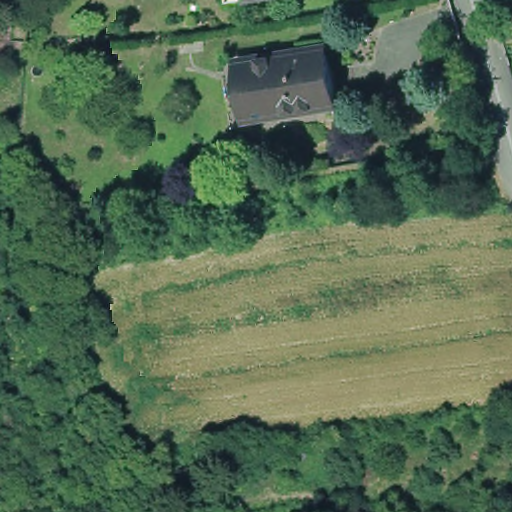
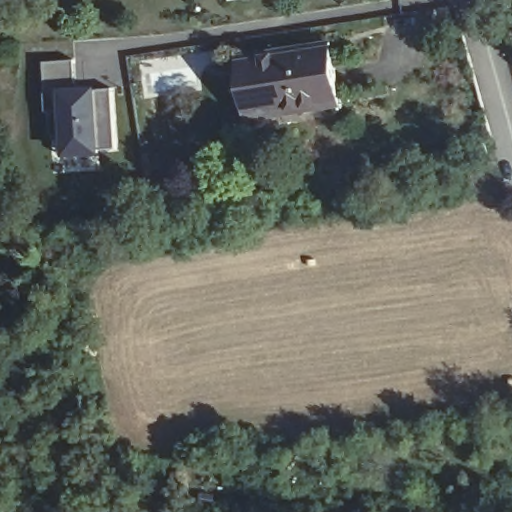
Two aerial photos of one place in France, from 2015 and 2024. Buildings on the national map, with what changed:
unchanged [(330,46),(338,99),(304,105),(304,115),(275,120),(273,106),(251,109),(243,60),(330,46)]
new [(60,135),(53,135),(51,110),(48,111),(46,92),(48,92),(45,61),(76,59),(78,90),(113,87),(118,147),(100,149),(100,151),(68,154),(61,154),(60,135)]
unchanged [(488,158),(478,160),(474,145),(484,142),(488,158)]

